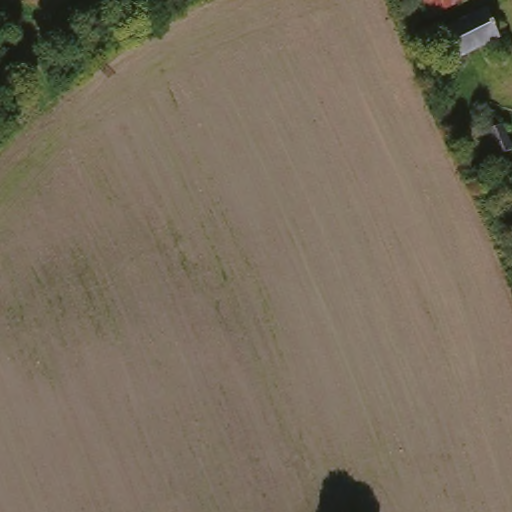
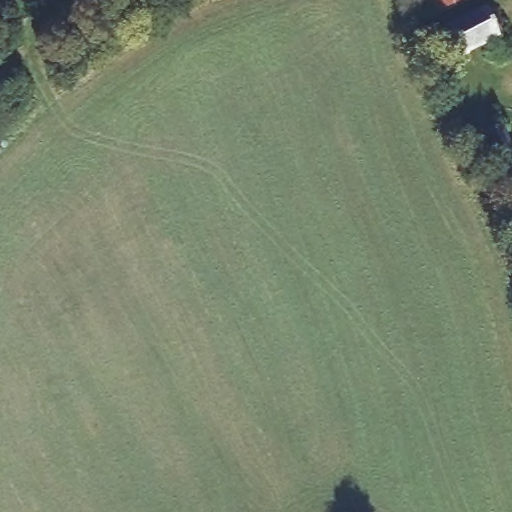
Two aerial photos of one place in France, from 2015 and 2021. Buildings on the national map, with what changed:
unchanged [(423,16),(414,0),(462,0),(425,19),(423,16)]
unchanged [(503,42),(451,67),(439,41),(438,38),(489,13),(503,42)]
unchanged [(507,154),(504,155),(484,158),(480,127),(503,124),(507,154)]

